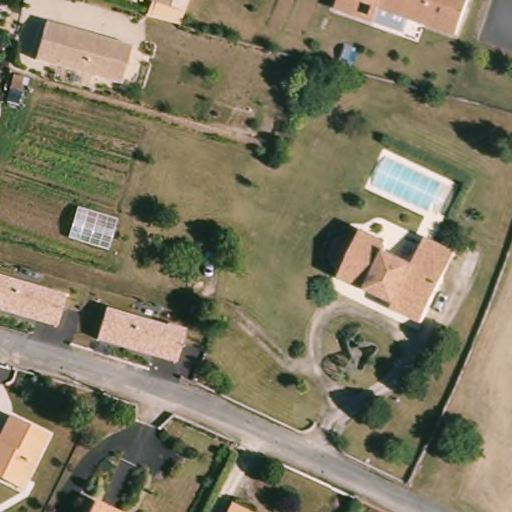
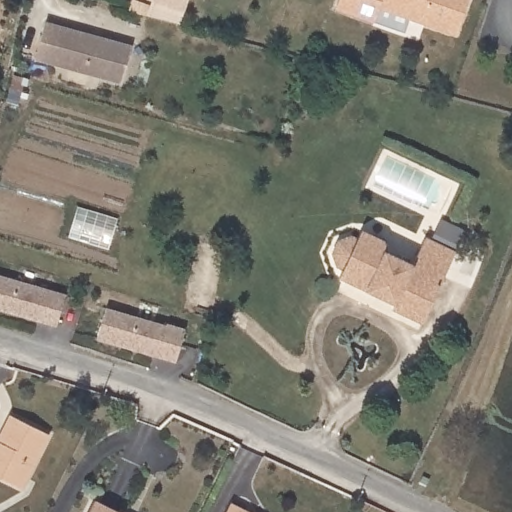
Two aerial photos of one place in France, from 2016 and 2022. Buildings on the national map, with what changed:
unchanged [(175,9),(151,1),(151,0),(178,0),(175,9)]
unchanged [(457,35),(381,8),(376,22),(337,9),(340,0),(471,0),(457,35)]
unchanged [(135,45),(125,84),(35,60),(45,21),(135,45)]
unchanged [(361,229),(382,239),(385,247),(385,249),(412,261),(424,235),(454,249),(421,320),(395,308),(391,302),(393,300),(339,275),(343,266),(336,263),(332,251),(338,235),(349,232),(358,235),(361,229)]
unchanged [(65,295),(56,325),(0,311),(0,276),(65,295)]
unchanged [(95,340),(105,307),(183,329),(174,362),(95,340)]
unchanged [(49,435),(22,487),(0,476),(0,436),(10,415),(49,435)]
unchanged [(250,512),(222,512),(228,500),(250,512)]
unchanged [(90,512),(95,501),(116,512),(90,512)]

